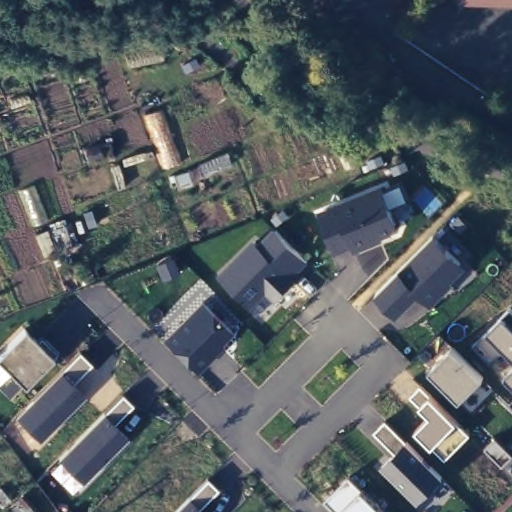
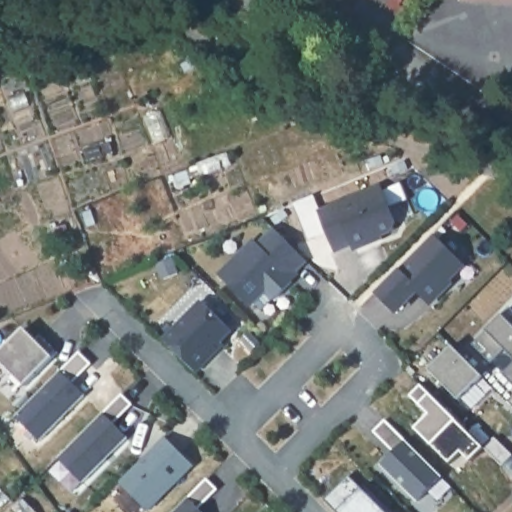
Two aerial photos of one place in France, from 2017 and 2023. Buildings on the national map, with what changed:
unchanged [(312,2),(287,2),(286,0),(314,0),(312,2)]
unchanged [(460,0),(512,0),(512,3),(461,1),(460,0)]
unchanged [(390,234),(381,236),(383,242),(352,254),(350,249),(333,255),(315,211),(380,184),(395,226),(390,234)]
unchanged [(253,238),(257,243),(273,227),(310,264),(277,300),(267,292),(251,308),(217,274),(253,238)]
unchanged [(451,282),(456,286),(433,309),(416,295),(395,315),(369,292),(393,269),(397,272),(432,235),(467,268),(451,282)]
unchanged [(222,346),(224,349),(199,376),(160,342),(201,299),(236,331),(222,346)]
unchanged [(489,360),(473,344),(511,307),(512,309),(512,355),(502,346),(489,360)]
unchanged [(22,387),(0,366),(0,350),(23,326),(35,339),(40,333),(59,352),(22,387)]
unchanged [(450,348),(483,378),(460,400),(429,369),(450,348)]
unchanged [(80,351),(92,364),(72,384),(85,396),(40,441),(16,416),(80,351)]
unchanged [(512,368),(512,382),(505,374),(512,368)]
unchanged [(434,442),(431,445),(416,429),(430,415),(420,404),(422,402),(410,395),(421,385),(431,395),(430,395),(456,420),(458,421),(470,434),(445,458),(434,442)]
unchanged [(115,426),(127,438),(81,485),(54,458),(121,392),(135,407),(115,426)]
unchanged [(512,399),(512,402),(511,400),(512,399)]
unchanged [(416,505),(379,468),(390,454),(371,433),(386,419),(445,476),(416,505)]
new [(123,478),(164,437),(192,466),(148,510),(120,482),(123,478)]
unchanged [(202,512),(170,512),(205,475),(218,490),(201,511),(202,512)]
unchanged [(376,500),(374,500),(387,512),(337,512),(339,510),(325,499),(350,475),(376,500)]

